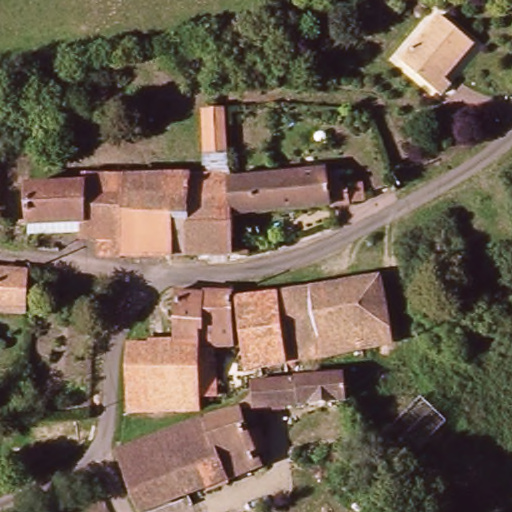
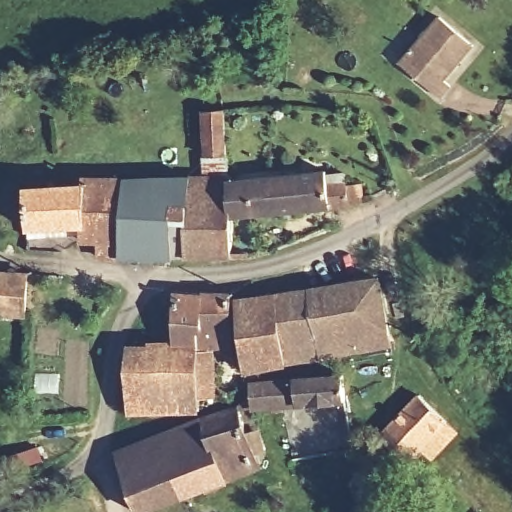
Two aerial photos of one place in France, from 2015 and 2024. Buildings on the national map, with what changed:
unchanged [(437,25),(446,17),(473,47),(467,54),(442,78),(449,85),(435,98),(400,62),(437,25)]
unchanged [(230,148),(230,154),(210,156),(202,112),(222,109),(230,148)]
unchanged [(186,208),(189,204),(233,199),(232,178),(325,167),(326,173),(329,184),(348,181),(352,182),(356,183),(360,185),(363,189),(362,194),(360,200),(352,201),(350,204),(318,209),(253,217),(253,244),(270,243),(272,251),(260,255),(249,257),(181,261),(176,260),(186,208)]
unchanged [(33,199),(47,198),(87,195),(87,187),(125,188),(145,186),(231,175),(232,178),(233,199),(189,204),(186,208),(176,260),(142,261),(105,264),(105,248),(88,247),(87,232),(34,236),(33,199)]
unchanged [(31,274),(30,312),(0,310),(1,304),(0,304),(0,272),(1,273),(31,274)]
unchanged [(321,329),(316,288),(381,276),(395,344),(325,358),(321,329)]
unchanged [(281,295),(316,288),(321,329),(325,358),(288,365),(281,295)]
unchanged [(205,349),(180,350),(182,297),(214,298),(240,295),(240,347),(217,348),(216,395),(202,395),(205,349)]
unchanged [(281,295),(288,365),(247,372),(246,302),(281,295)]
unchanged [(205,349),(202,395),(201,411),(164,416),(130,421),(131,357),(134,354),(180,350),(205,349)]
unchanged [(327,379),(346,377),(349,402),(257,410),(255,385),(290,382),(327,379)]
new [(450,422),(411,460),(383,432),(420,393),(450,422)]
unchanged [(262,463),(207,489),(191,497),(165,434),(241,399),(262,463)]
unchanged [(145,512),(121,453),(165,434),(191,497),(158,512),(145,512)]

